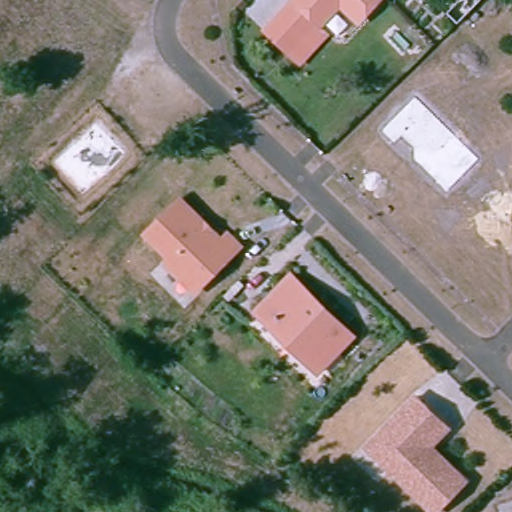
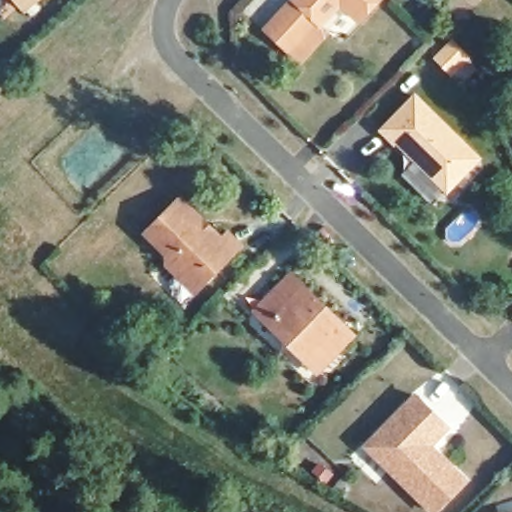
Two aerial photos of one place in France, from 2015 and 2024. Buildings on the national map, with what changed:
new [(33,0),(63,0),(46,15),(33,0)]
unchanged [(303,0),(322,20),(318,24),(329,36),(300,67),(261,29),(288,0),(303,0)]
unchanged [(303,0),(342,0),(322,20),(303,0)]
unchanged [(344,0),(377,0),(360,17),(344,0)]
unchanged [(512,0),(512,15),(489,37),(478,27),(505,0),(512,0)]
new [(447,195),(380,130),(415,94),(482,157),(447,195)]
unchanged [(182,282),(167,266),(167,261),(170,258),(147,234),(182,200),(222,242),(228,237),(240,249),(203,285),(193,293),(182,282)]
unchanged [(281,338),(253,310),(291,273),(351,336),(335,352),(314,372),(281,338)]
unchanged [(448,426),(430,443),(464,480),(432,511),(377,455),(366,442),(382,427),(417,393),(448,426)]

